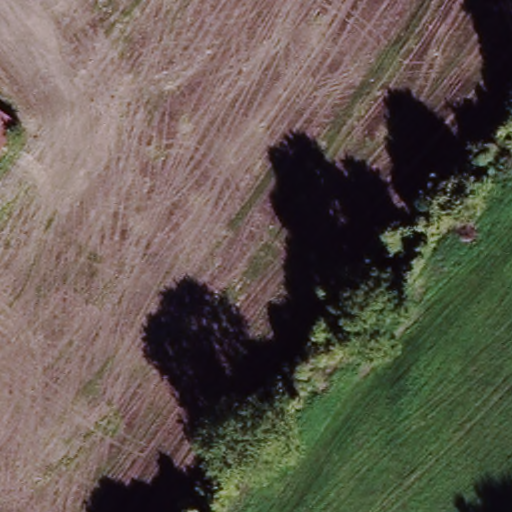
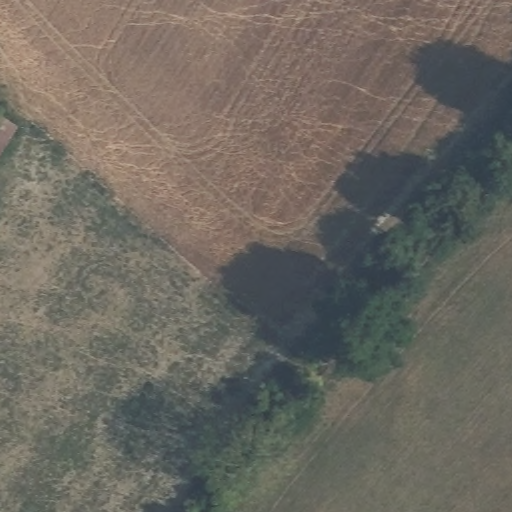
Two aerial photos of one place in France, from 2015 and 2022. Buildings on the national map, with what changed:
unchanged [(0,153),(0,125),(13,133),(0,153)]

